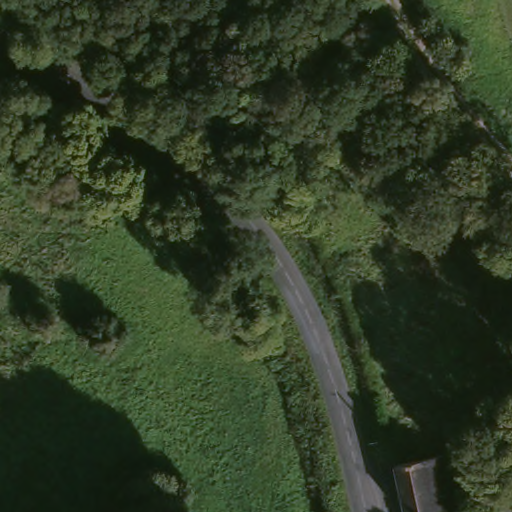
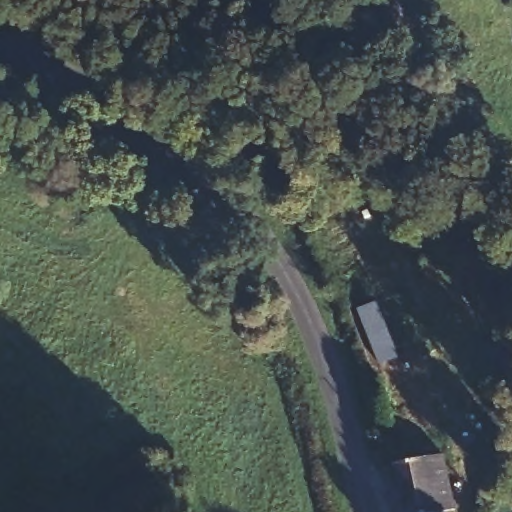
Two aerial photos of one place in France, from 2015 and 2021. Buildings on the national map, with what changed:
new [(377,301),(400,358),(380,365),(358,310),(377,301)]
unchanged [(435,451),(449,500),(438,504),(440,512),(412,512),(405,512),(392,464),(435,451)]

